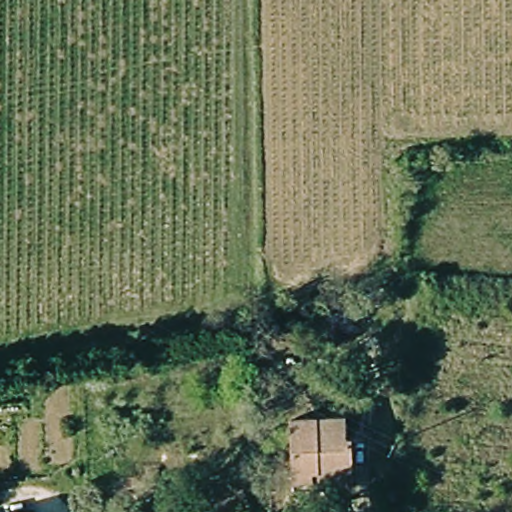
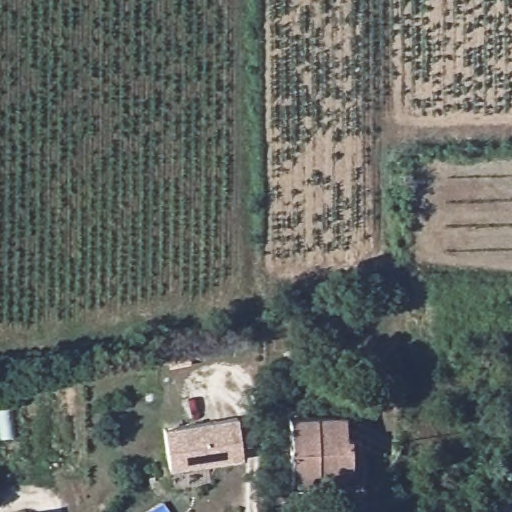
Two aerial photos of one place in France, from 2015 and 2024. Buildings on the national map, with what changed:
new [(236,420),(240,460),(166,468),(162,428),(236,420)]
unchanged [(344,421),(346,443),(350,444),(351,470),(309,474),(309,482),(291,482),(289,423),(344,421)]

